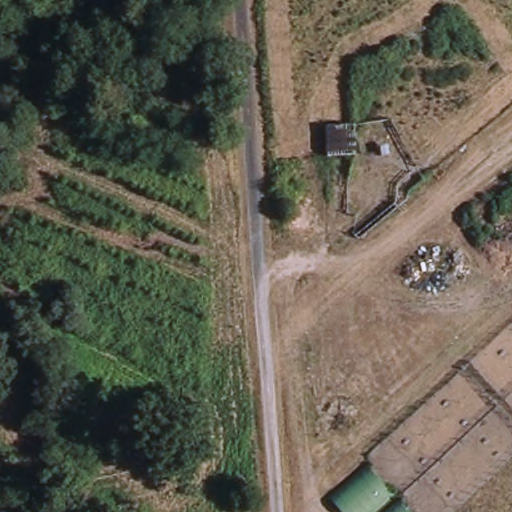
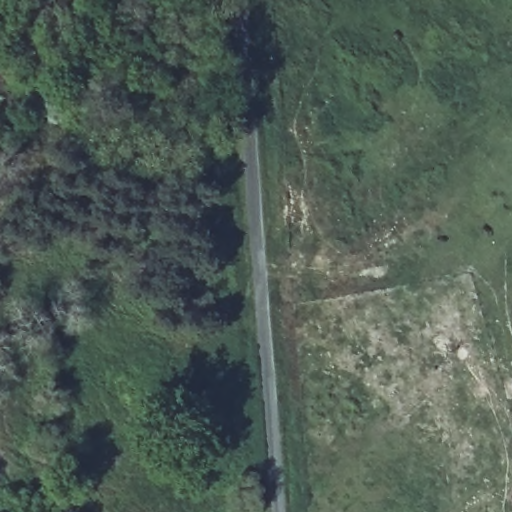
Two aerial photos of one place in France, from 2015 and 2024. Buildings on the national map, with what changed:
demolished [(371,463),(413,512),(346,512),(333,496),(371,463)]

